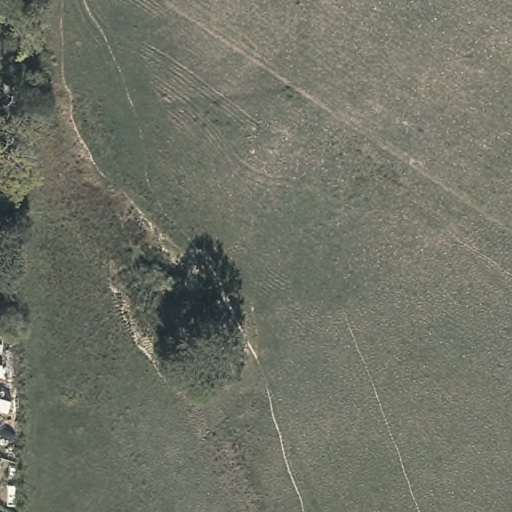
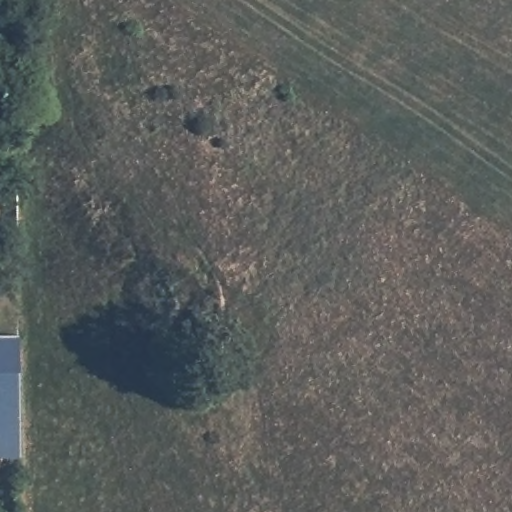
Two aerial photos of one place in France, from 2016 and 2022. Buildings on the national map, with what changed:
new [(20,336),(20,371),(21,457),(0,457),(0,337),(20,336)]

